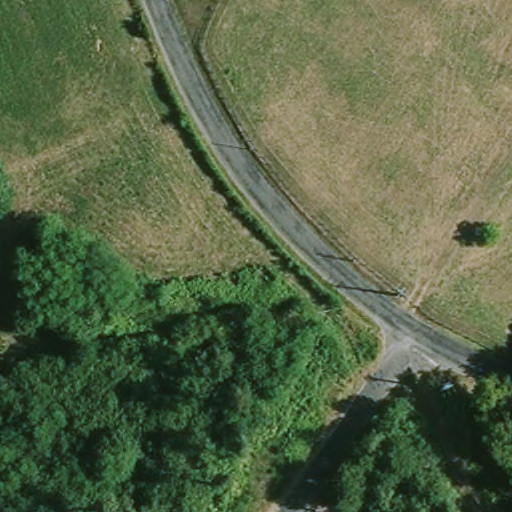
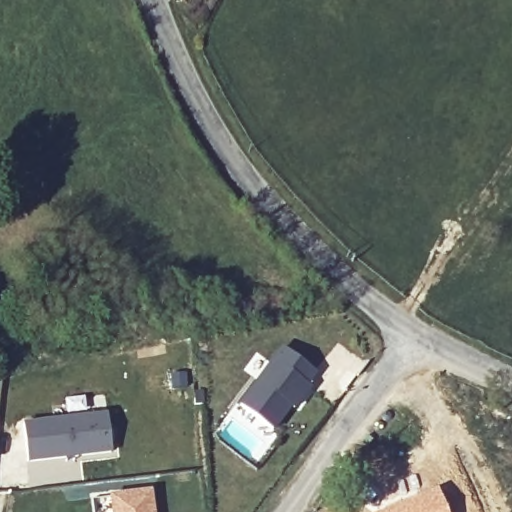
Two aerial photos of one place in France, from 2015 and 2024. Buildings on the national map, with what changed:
new [(307,385),(311,388),(294,409),(291,407),(272,430),(238,404),(283,346),(316,374),(307,385)]
new [(20,424),(106,414),(111,452),(26,463),(20,424)]
new [(447,512),(379,512),(436,487),(447,512)]
new [(149,489),(153,512),(110,512),(108,496),(149,489)]

